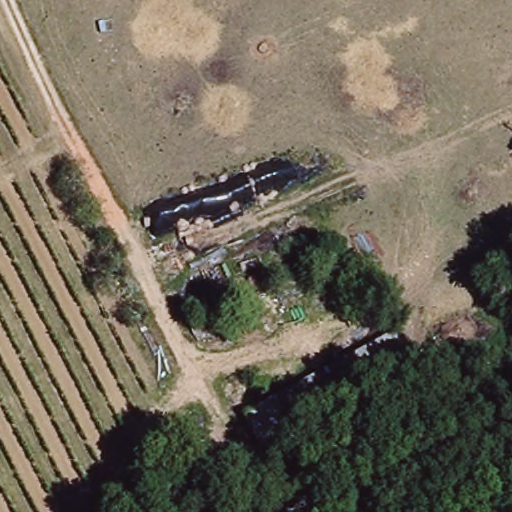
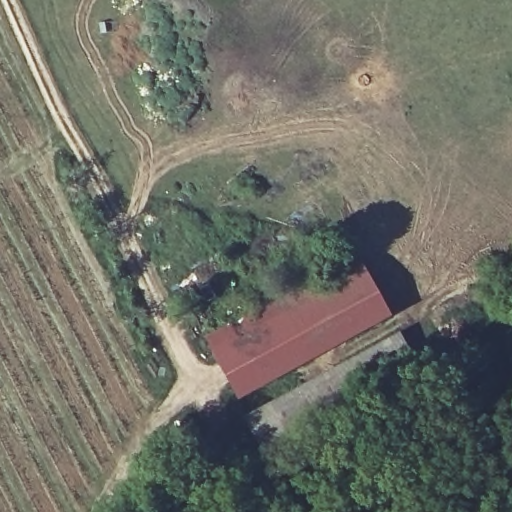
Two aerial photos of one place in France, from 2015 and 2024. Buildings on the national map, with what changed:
new [(205,345),(361,265),(388,317),(235,400),(205,345)]
unchanged [(306,387),(362,348),(395,337),(413,371),(263,448),(249,423),(247,419),(306,387)]

